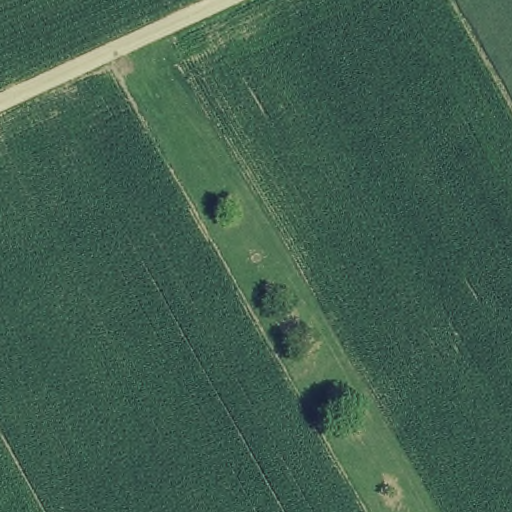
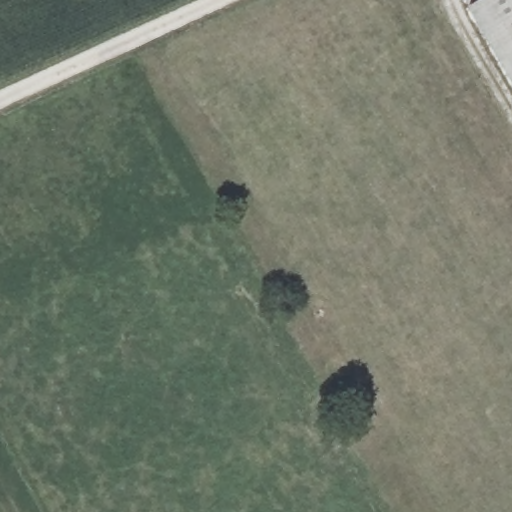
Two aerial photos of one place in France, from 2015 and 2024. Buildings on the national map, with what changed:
new [(512,0),(512,79),(469,6),(481,0),(512,0)]

